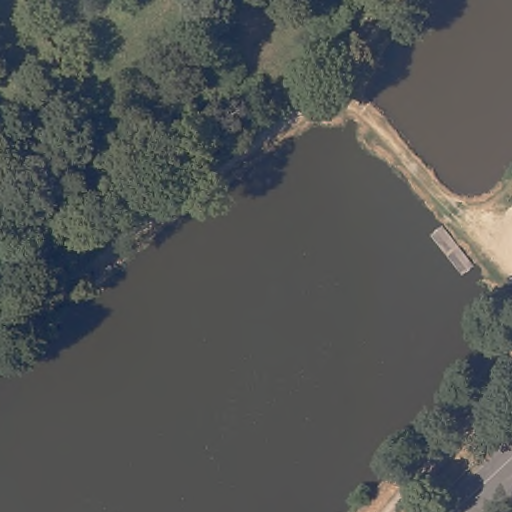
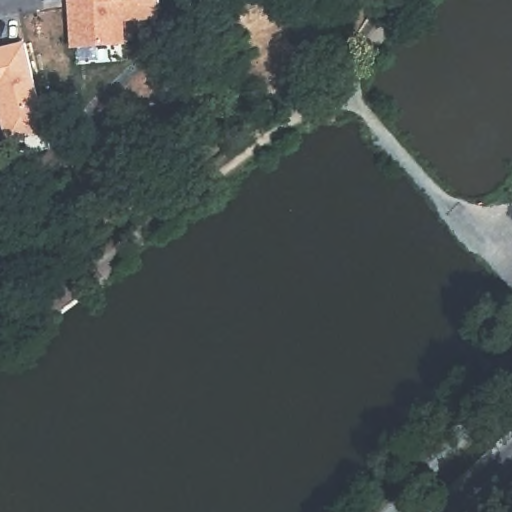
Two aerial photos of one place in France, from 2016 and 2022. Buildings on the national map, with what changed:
new [(127,21),(127,44),(70,48),(67,0),(158,0),(160,19),(127,21)]
new [(25,42),(46,136),(6,144),(0,120),(0,48),(25,42)]

